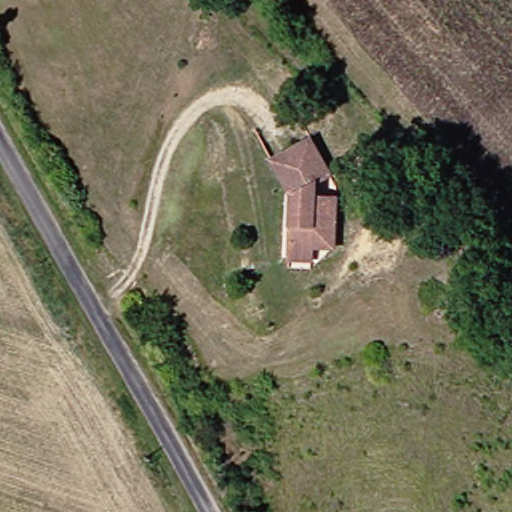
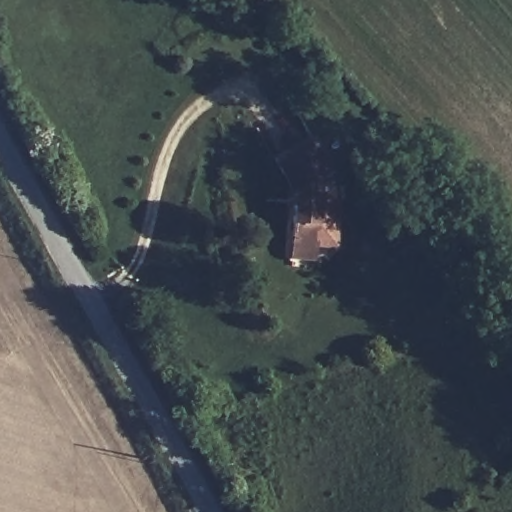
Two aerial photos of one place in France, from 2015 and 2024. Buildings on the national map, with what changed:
unchanged [(297,268),(298,254),(300,216),(306,216),(307,205),(305,205),(300,196),(296,198),(280,169),(318,148),(338,183),(323,192),(322,205),(344,206),(342,256),(321,255),(320,269),(297,268)]

